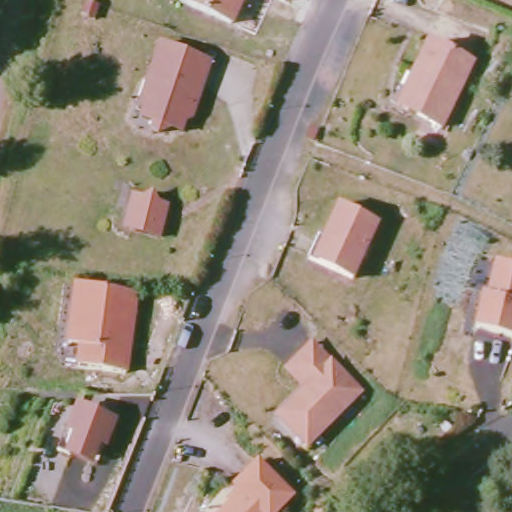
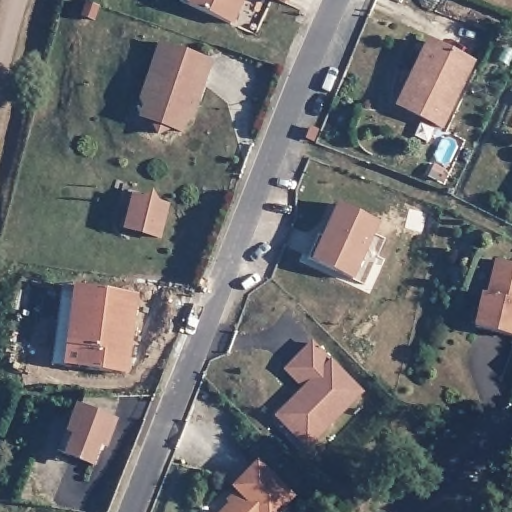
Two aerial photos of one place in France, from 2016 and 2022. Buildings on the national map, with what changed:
unchanged [(230,28),(173,3),(174,0),(243,0),(230,28)]
unchanged [(285,6),(269,0),(287,0),(285,6)]
unchanged [(425,39),(470,60),(439,126),(402,109),(393,105),(408,75),(425,39)]
unchanged [(190,116),(184,119),(180,130),(168,126),(155,132),(149,120),(138,116),(142,105),(138,99),(145,81),(150,64),(152,57),(157,42),(208,60),(200,88),(193,104),(190,116)]
unchanged [(123,226),(127,211),(130,204),(137,207),(147,203),(152,212),(160,215),(152,244),(130,237),(120,234),(123,226)]
unchanged [(322,238),(339,203),(378,221),(352,279),(317,262),(307,258),(317,235),(322,238)]
unchanged [(512,266),(512,338),(473,328),(481,295),(486,296),(495,262),(512,266)]
unchanged [(68,370),(63,369),(57,356),(66,291),(78,293),(78,290),(138,298),(128,377),(68,370)]
unchanged [(300,389),(282,370),(308,343),(358,391),(307,443),(305,447),(273,417),(300,389)]
unchanged [(65,430),(75,409),(110,424),(100,445),(93,443),(87,457),(66,448),(73,434),(65,430)]
unchanged [(292,496),(277,512),(222,512),(229,505),(226,502),(236,492),(232,488),(255,462),(292,496)]

